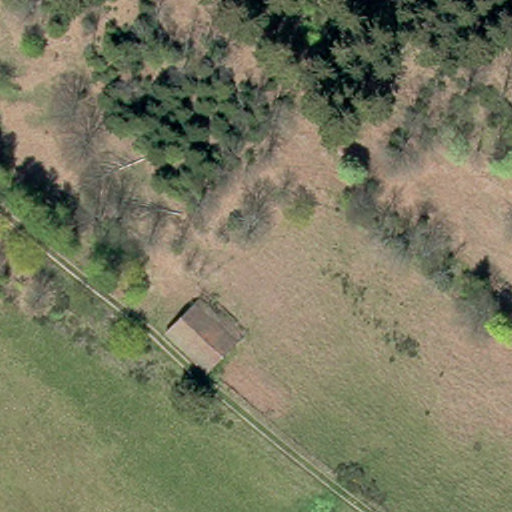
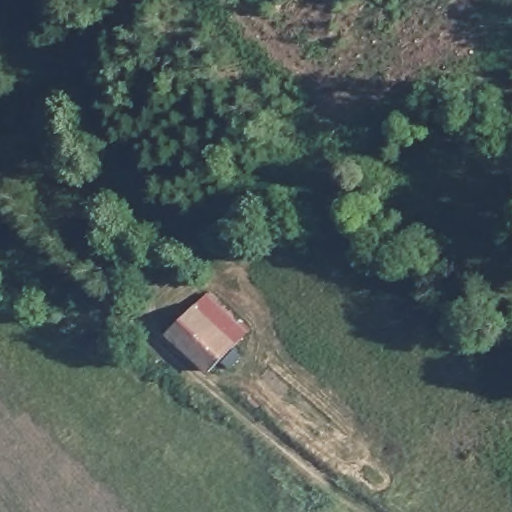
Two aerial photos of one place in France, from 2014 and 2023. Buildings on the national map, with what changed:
unchanged [(194,307),(208,317),(212,313),(237,333),(205,374),(162,342),(194,307)]

